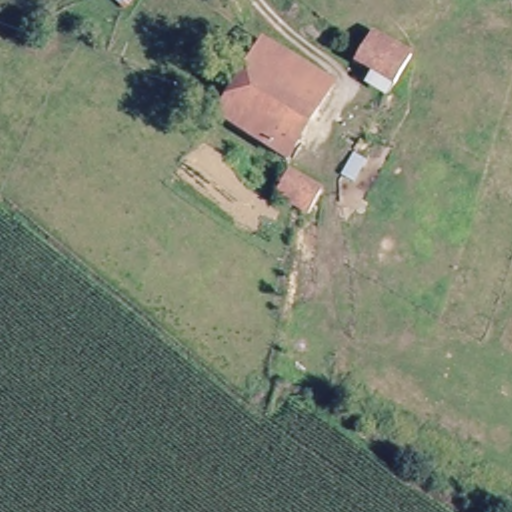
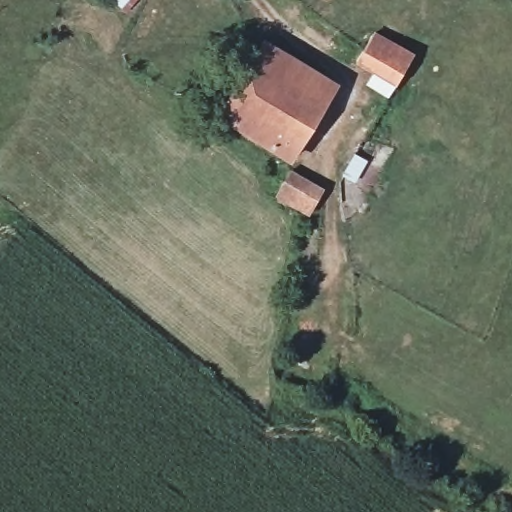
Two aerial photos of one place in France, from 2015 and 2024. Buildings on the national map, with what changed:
unchanged [(113,11),(122,0),(144,0),(126,22),(113,11)]
unchanged [(350,69),(354,60),(366,38),(413,57),(396,89),(350,69)]
unchanged [(258,42),(324,79),(280,156),(215,120),(258,42)]
unchanged [(314,215),(284,199),(294,180),(324,196),(314,215)]

